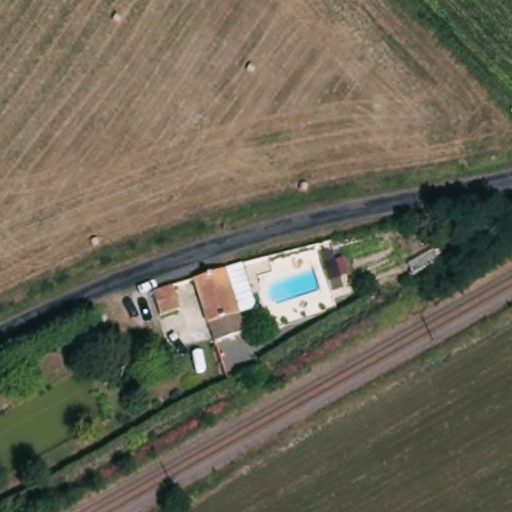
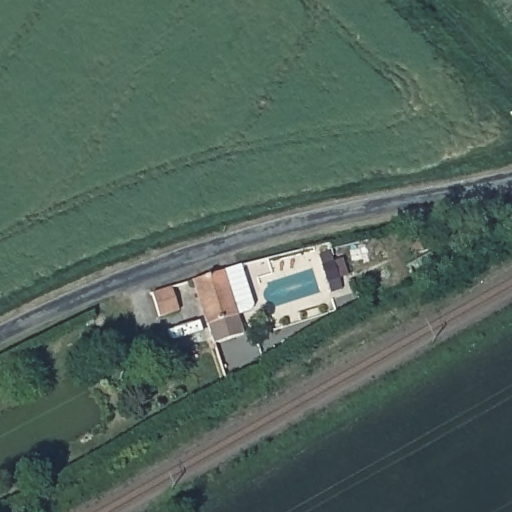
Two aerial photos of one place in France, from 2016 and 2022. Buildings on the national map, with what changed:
unchanged [(330,236),(343,267),(330,273),(317,241),(330,236)]
unchanged [(216,348),(210,329),(196,284),(226,275),(243,270),(255,311),(253,316),(240,320),(246,339),(216,348)]
unchanged [(175,276),(181,300),(162,306),(155,282),(175,276)]

